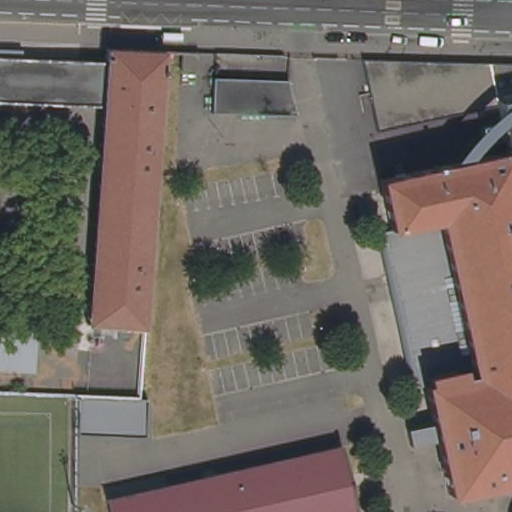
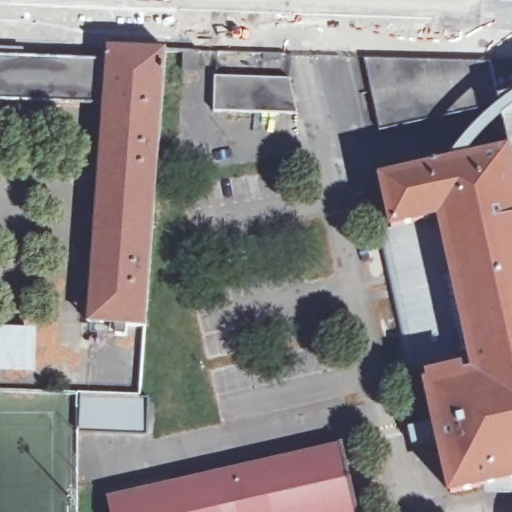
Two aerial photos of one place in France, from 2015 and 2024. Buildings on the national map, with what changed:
unchanged [(86,327),(103,107),(0,103),(0,55),(105,59),(107,48),(166,51),(147,329),(86,327)]
unchanged [(201,50),(200,71),(185,70),(185,50),(201,50)]
unchanged [(495,64),(495,78),(367,107),(357,61),(495,64)]
unchanged [(452,497),(427,388),(422,389),(420,382),(387,234),(393,233),(382,183),(384,183),(367,107),(495,78),(512,74),(512,496),(486,497),(485,490),(452,497)]
unchanged [(285,79),(294,115),(210,112),(211,77),(285,79)]
unchanged [(420,382),(412,384),(378,236),(387,234),(420,382)]
new [(37,327),(36,373),(0,372),(0,326),(37,327)]
unchanged [(143,432),(79,431),(82,394),(147,396),(143,432)]
unchanged [(132,493),(144,490),(174,483),(184,481),(203,477),(259,464),(343,444),(350,473),(359,512),(113,512),(110,498),(130,493),(132,493)]

